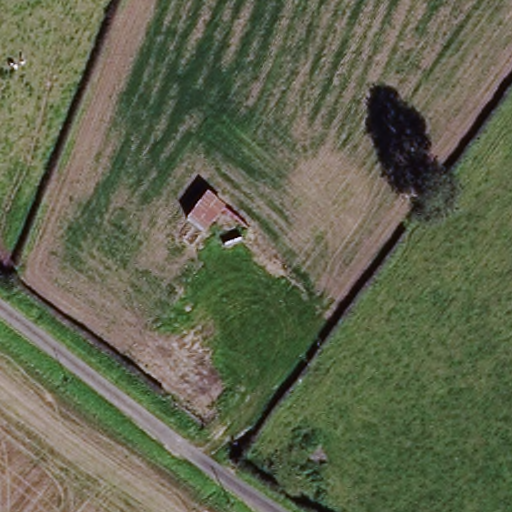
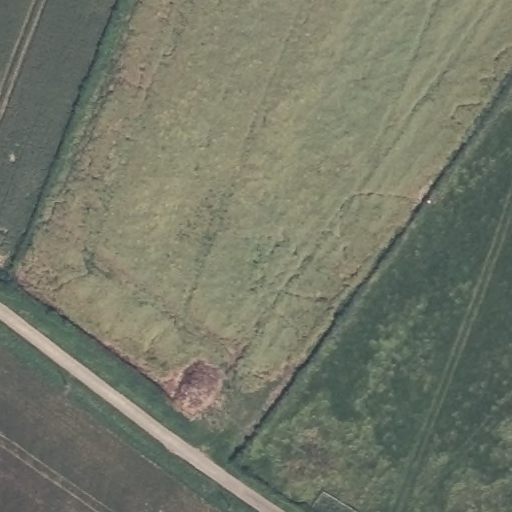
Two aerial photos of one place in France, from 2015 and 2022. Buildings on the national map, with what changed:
unchanged [(176,243),(189,224),(206,201),(222,213),(206,236),(192,256),(176,243)]

